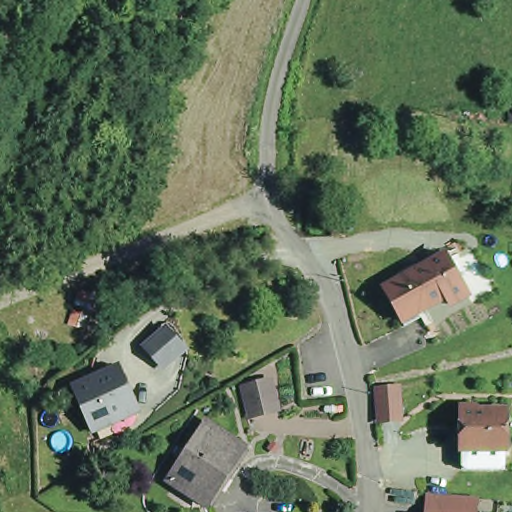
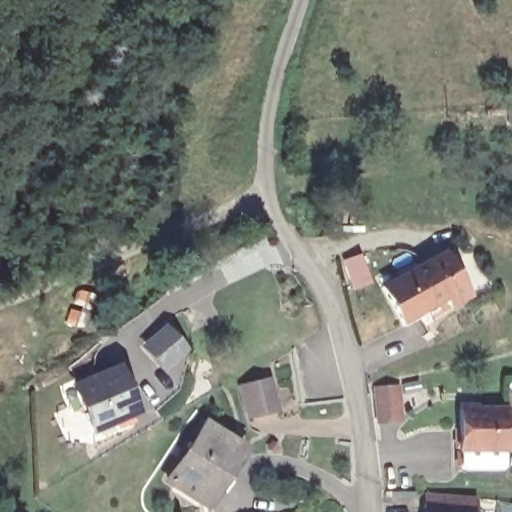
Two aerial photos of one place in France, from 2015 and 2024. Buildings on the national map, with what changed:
unchanged [(404,328),(402,324),(383,289),(428,265),(446,255),(469,294),(451,304),(446,299),(414,317),(417,321),(404,328)]
unchanged [(81,309),(76,307),(81,293),(94,297),(85,329),(77,327),(81,309)]
unchanged [(46,305),(55,307),(52,322),(44,320),(46,305)]
unchanged [(168,324),(191,352),(164,374),(143,346),(168,324)]
unchanged [(63,390),(108,365),(131,409),(83,441),(63,390)]
unchanged [(267,411),(254,418),(241,392),(267,377),(279,399),(282,404),(267,411)]
unchanged [(398,397),(401,420),(378,422),(376,396),(398,397)]
unchanged [(451,412),(499,411),(499,448),(451,448),(451,412)]
unchanged [(206,419),(243,444),(204,502),(169,477),(206,419)]
unchanged [(426,503),(427,494),(477,499),(476,506),(476,512),(425,512),(426,503)]

